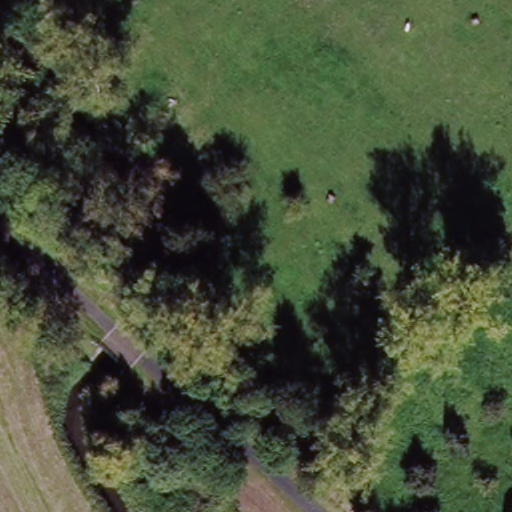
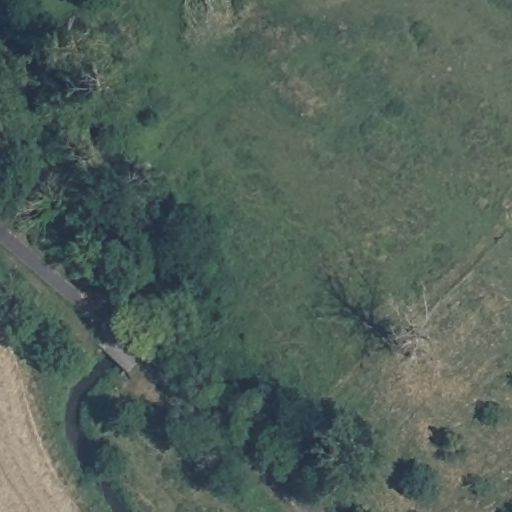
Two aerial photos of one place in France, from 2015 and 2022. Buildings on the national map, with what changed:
[]

